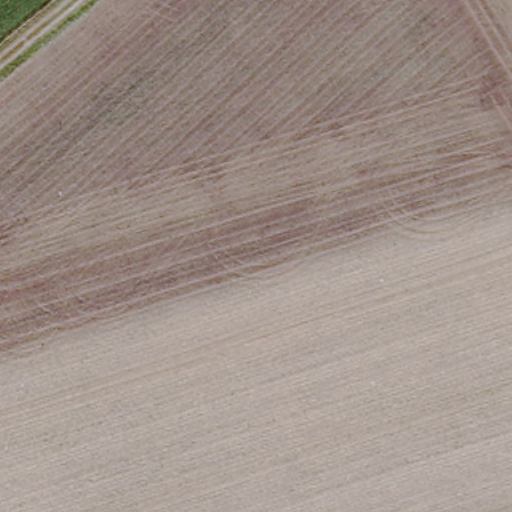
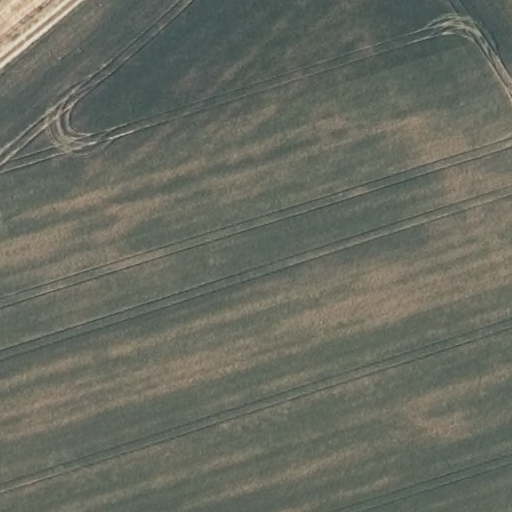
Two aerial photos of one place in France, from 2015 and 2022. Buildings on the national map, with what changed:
[]

